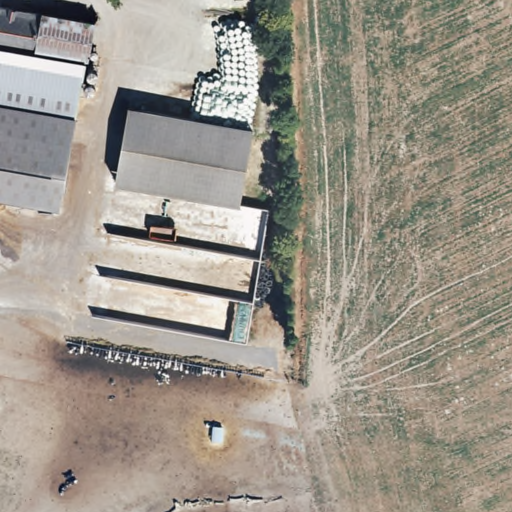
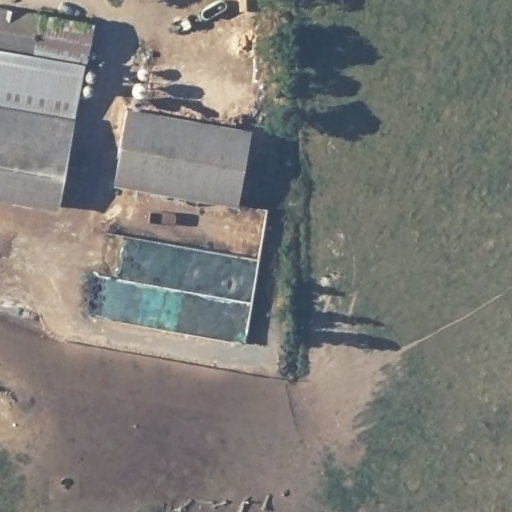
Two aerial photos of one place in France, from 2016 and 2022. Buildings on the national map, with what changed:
unchanged [(79,81),(57,203),(0,193),(0,3),(90,18),(79,81)]
unchanged [(112,182),(126,108),(250,129),(237,204),(112,182)]

